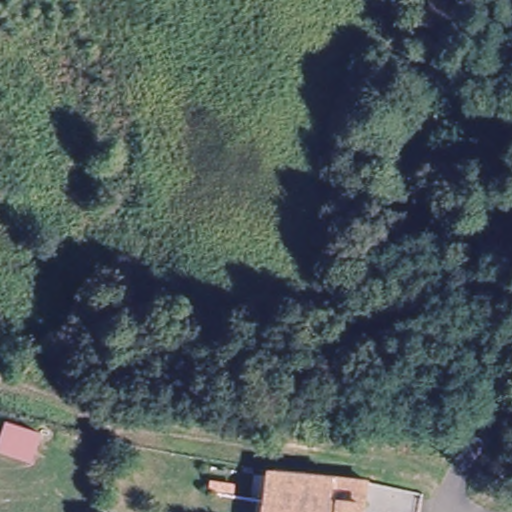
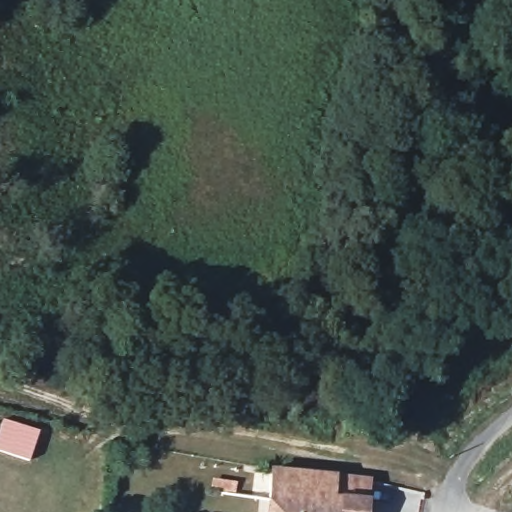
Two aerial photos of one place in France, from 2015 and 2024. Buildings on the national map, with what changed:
unchanged [(0,452),(0,412),(38,421),(27,461),(0,452)]
unchanged [(262,467),(290,468),(358,471),(356,512),(260,512),(262,467)]

